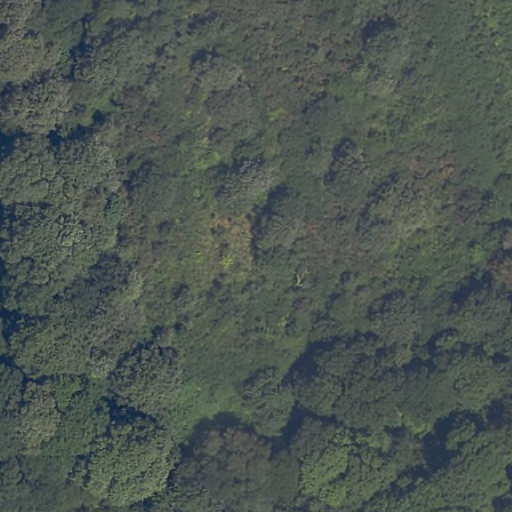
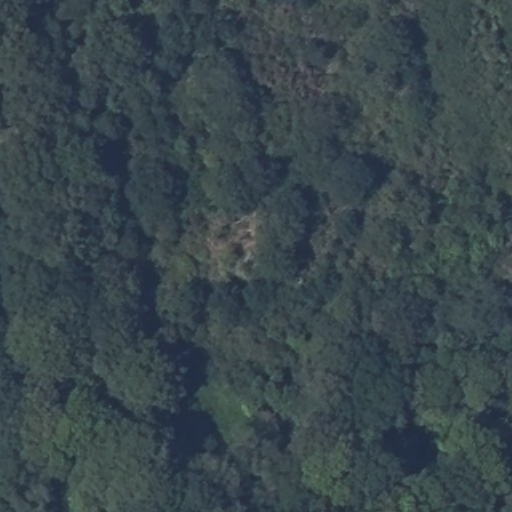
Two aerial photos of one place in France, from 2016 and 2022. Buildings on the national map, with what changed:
[]

